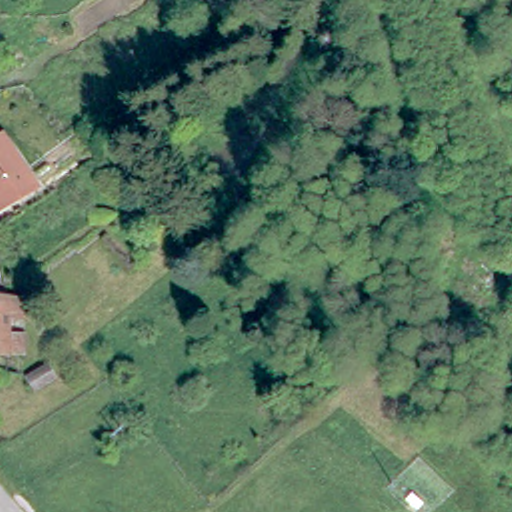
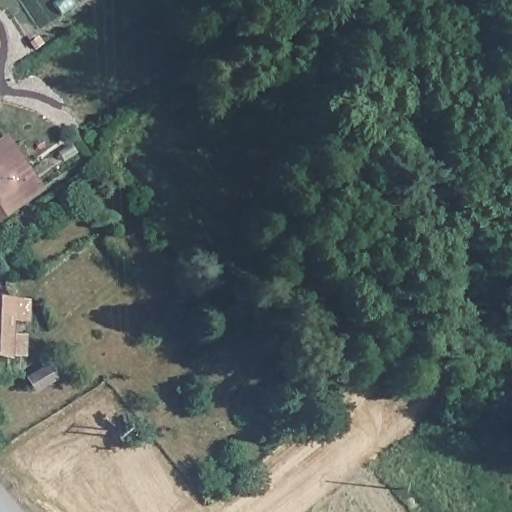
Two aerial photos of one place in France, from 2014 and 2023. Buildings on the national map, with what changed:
unchanged [(3,172),(22,198),(0,213),(0,139),(2,138),(17,163),(3,172)]
unchanged [(12,297),(5,351),(0,351),(0,296),(12,297)]
unchanged [(27,354),(5,351),(12,297),(32,300),(27,354)]
unchanged [(27,378),(49,363),(57,376),(36,390),(27,378)]

